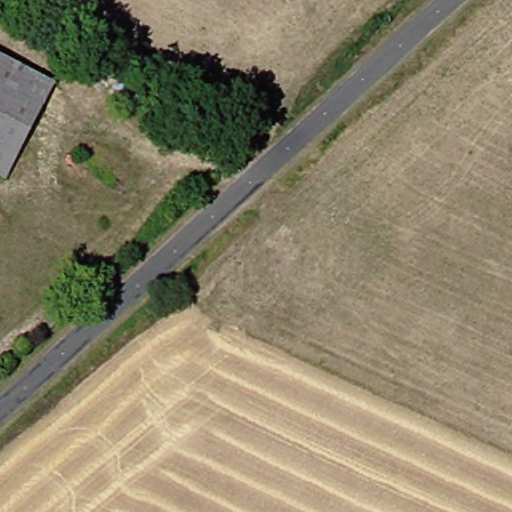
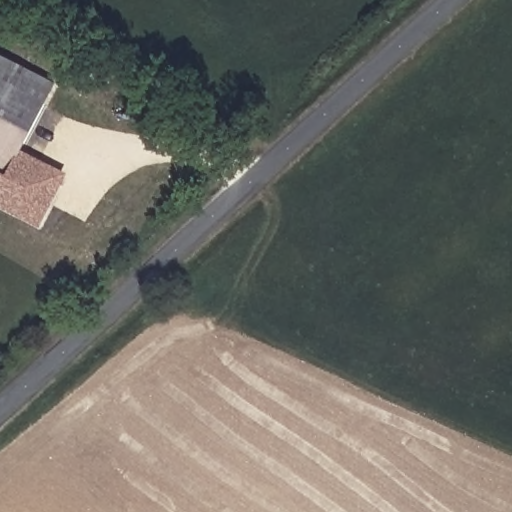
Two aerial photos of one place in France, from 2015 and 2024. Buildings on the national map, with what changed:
unchanged [(0,173),(0,63),(46,87),(0,173)]
new [(0,206),(0,173),(15,144),(67,172),(39,226),(0,206)]

